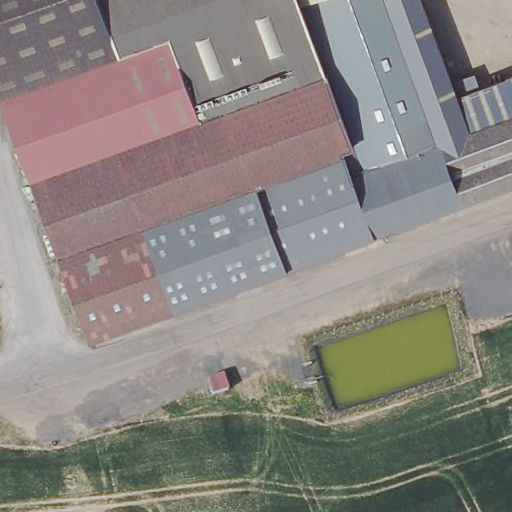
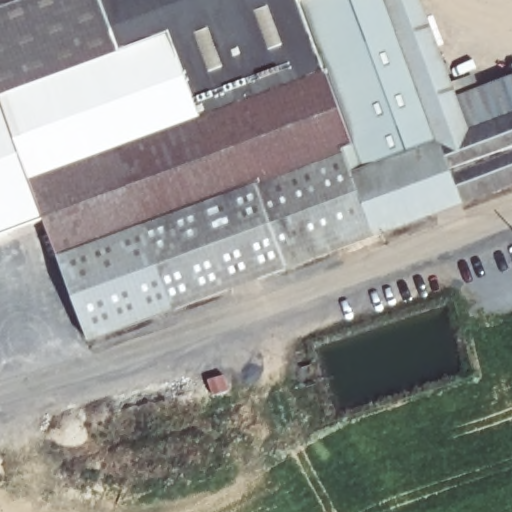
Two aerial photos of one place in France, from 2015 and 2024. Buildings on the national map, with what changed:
unchanged [(290,270),(94,341),(5,97),(0,99),(0,0),(428,0),(464,99),(512,81),(512,187),(380,236),(290,270)]
new [(0,235),(0,99),(5,97),(49,217),(0,235)]

